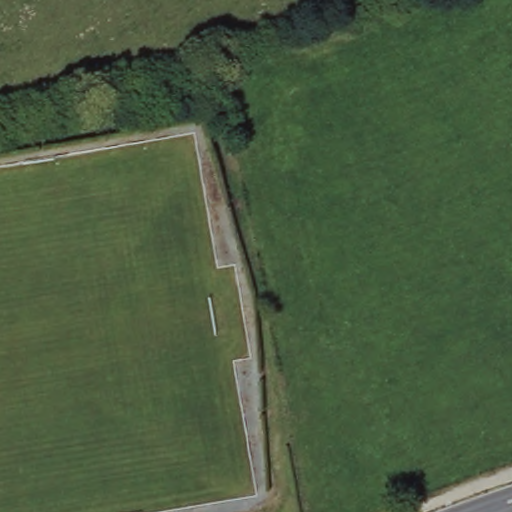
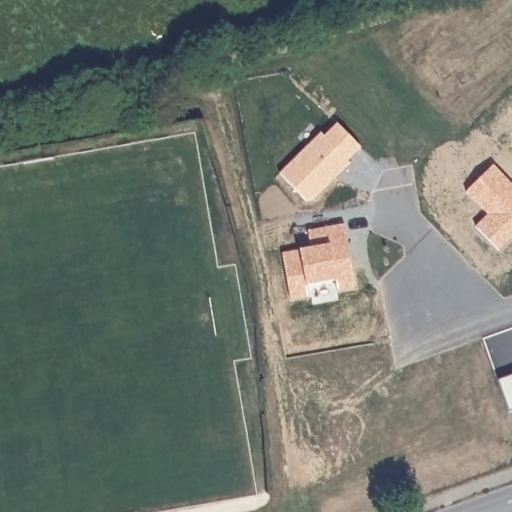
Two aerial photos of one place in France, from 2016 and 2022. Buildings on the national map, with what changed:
new [(321,132),(325,135),(338,122),(361,146),(349,160),(351,162),(315,199),(308,200),(281,174),(321,132)]
new [(310,247),(306,231),(343,224),(354,286),(336,290),(334,280),(306,285),(308,295),(290,298),(281,253),(310,247)]
new [(509,410),(499,380),(512,375),(512,409),(509,410)]

